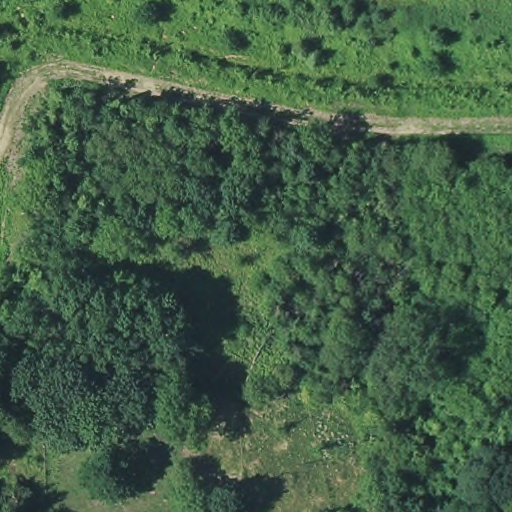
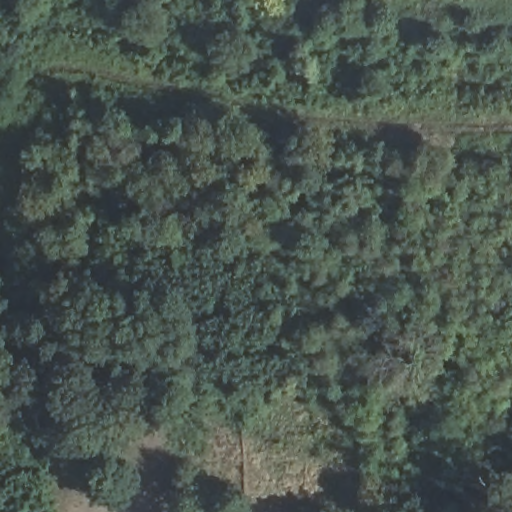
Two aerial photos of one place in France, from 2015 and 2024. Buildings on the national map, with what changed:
unchanged [(437,503),(415,508),(412,494),(434,489),(437,503)]

